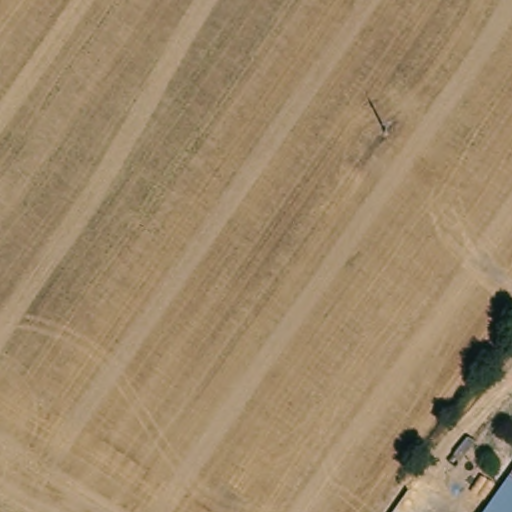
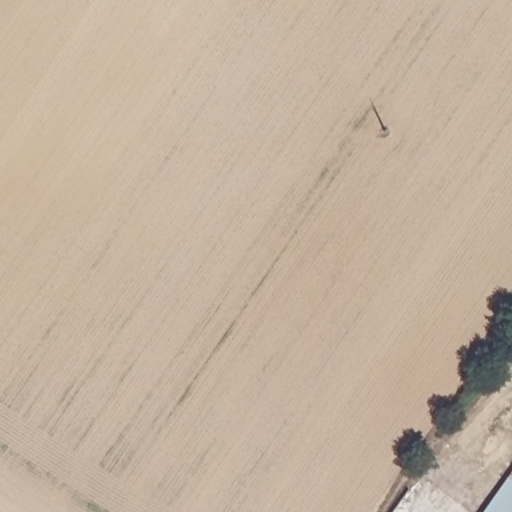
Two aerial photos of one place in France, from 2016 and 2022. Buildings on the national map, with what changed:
unchanged [(512,485),(512,512),(491,512),(512,485)]

